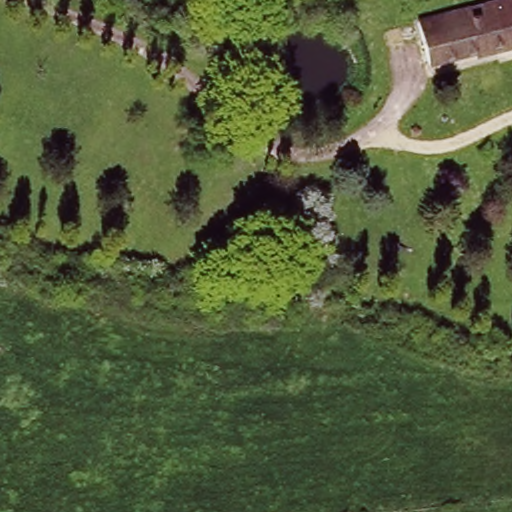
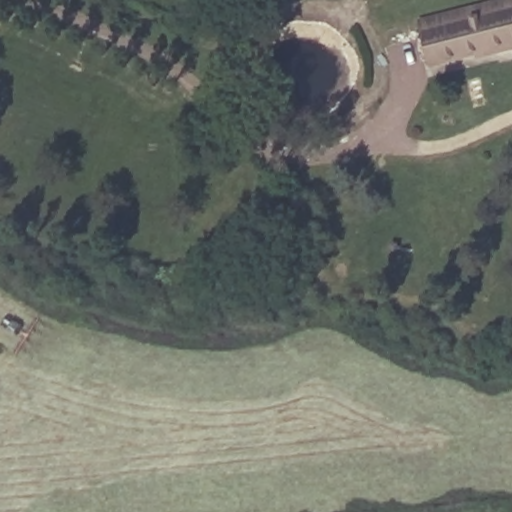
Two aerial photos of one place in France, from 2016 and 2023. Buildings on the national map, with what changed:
unchanged [(433,74),(420,27),(512,3),(512,53),(433,74)]

